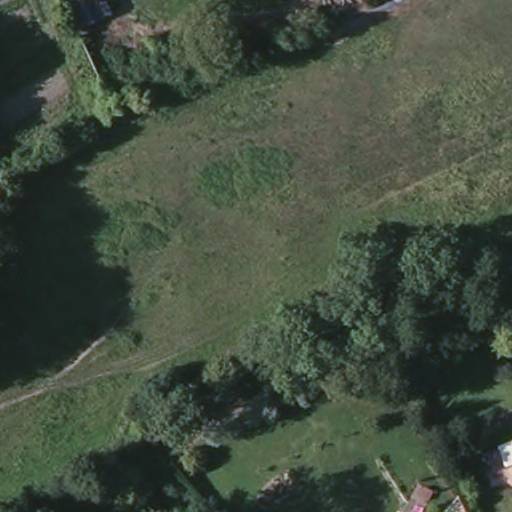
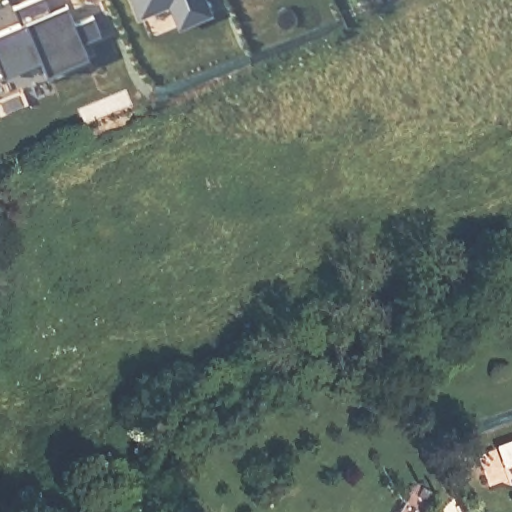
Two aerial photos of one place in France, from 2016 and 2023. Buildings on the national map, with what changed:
new [(44,59),(5,74),(0,60),(0,34),(24,25),(16,7),(35,0),(47,0),(52,12),(69,5),(76,24),(94,16),(102,34),(84,41),(87,55),(50,71),(44,59)]
demolished [(60,0),(102,0),(110,15),(75,32),(60,0)]
new [(152,36),(138,0),(207,0),(213,15),(152,36)]

